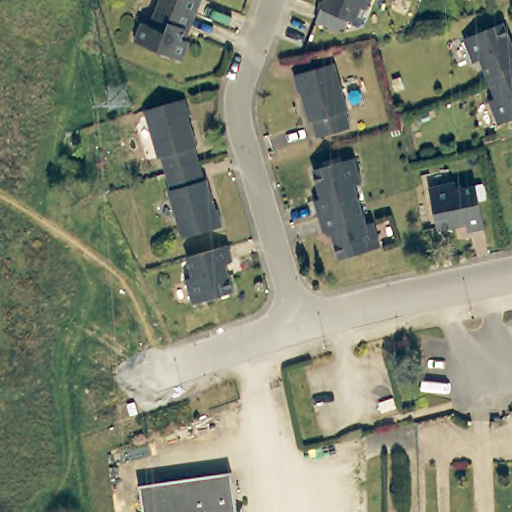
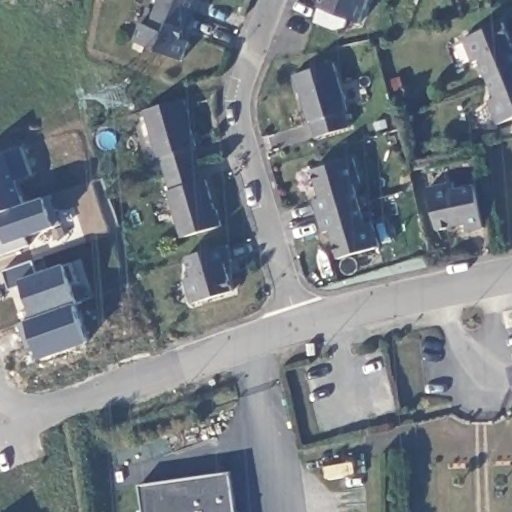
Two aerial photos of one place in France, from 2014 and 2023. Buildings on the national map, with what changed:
unchanged [(165,0),(210,0),(191,49),(194,50),(187,67),(137,48),(144,31),(151,33),(155,24),(165,0)]
unchanged [(357,27),(347,24),(344,30),(332,34),(312,26),(319,11),(317,10),(320,0),(369,0),(357,27)]
unchanged [(492,102),(498,99),(483,62),(476,65),(467,41),(506,25),(512,40),(512,122),(502,126),(492,102)]
unchanged [(337,66),(350,112),(348,114),(353,129),(320,139),(316,123),(312,123),(305,95),(302,95),(297,78),(337,66)]
unchanged [(186,116),(184,119),(193,148),(192,150),(202,182),(204,185),(212,210),(214,211),(220,229),(179,241),(165,195),(168,194),(158,159),(155,160),(141,113),(182,102),(186,116)]
new [(34,177),(17,183),(26,208),(0,217),(0,159),(24,151),(34,177)]
unchanged [(356,157),(363,183),(356,185),(367,223),(374,221),(382,247),(341,259),(332,231),(326,233),(316,199),(322,197),(315,170),(356,157)]
unchanged [(456,185),(457,193),(479,189),(487,231),(472,234),(471,227),(440,233),(432,191),(456,185)]
new [(0,220),(0,217),(26,208),(54,199),(64,228),(28,240),(31,249),(0,259),(0,233),(4,232),(0,220)]
unchanged [(230,249),(235,266),(228,268),(236,295),(194,308),(187,282),(193,279),(189,262),(230,249)]
new [(35,263),(40,278),(72,266),(80,286),(73,288),(79,306),(77,307),(35,321),(24,289),(11,293),(4,274),(35,263)]
new [(35,321),(77,307),(90,345),(41,362),(34,341),(27,343),(21,326),(35,321)]
unchanged [(227,468),(232,507),(239,510),(238,512),(139,512),(135,481),(227,468)]

